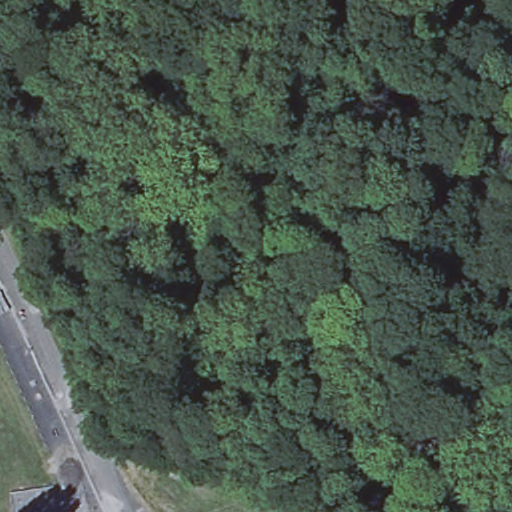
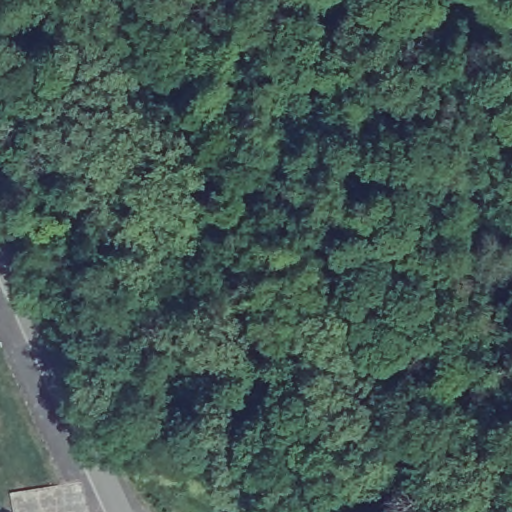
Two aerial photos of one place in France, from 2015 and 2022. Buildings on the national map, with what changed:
[]

